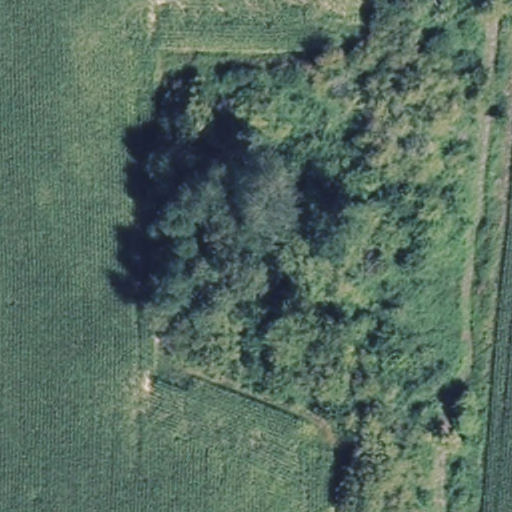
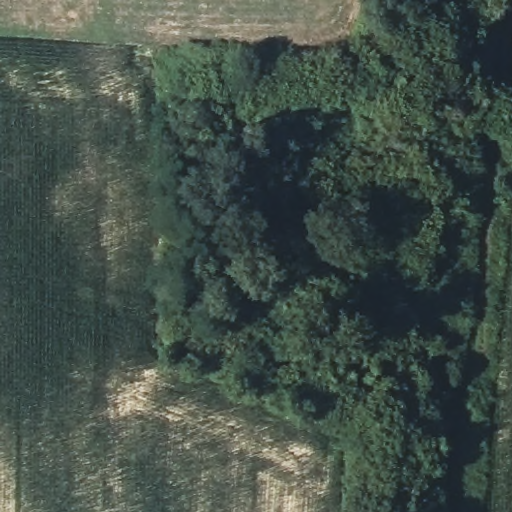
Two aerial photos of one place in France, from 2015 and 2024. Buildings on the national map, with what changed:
[]

